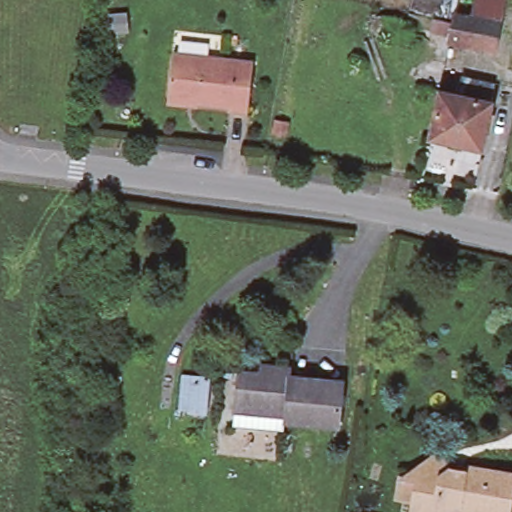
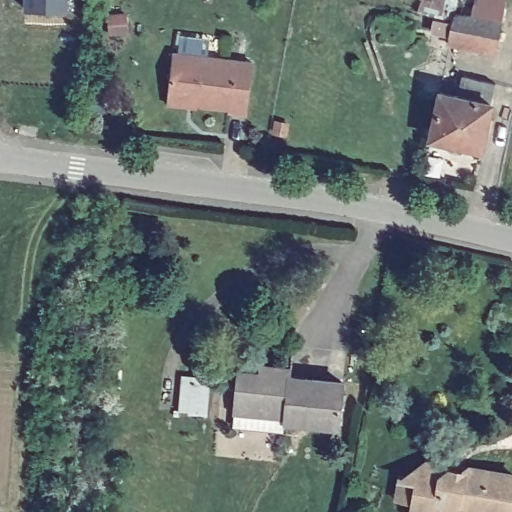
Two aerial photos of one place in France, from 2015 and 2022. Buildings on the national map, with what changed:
new [(22,10),(23,0),(68,0),(67,11),(22,10)]
unchanged [(448,11),(466,13),(470,0),(504,0),(491,55),(442,45),(448,11)]
unchanged [(162,103),(163,96),(168,52),(232,60),(250,61),(243,113),(225,110),(225,106),(193,102),(192,106),(162,103)]
unchanged [(424,140),(434,93),(455,97),(460,78),(490,85),(486,104),(476,151),(424,140)]
unchanged [(287,378),(342,384),(337,428),(283,422),(284,416),(234,411),(238,372),(259,374),(260,366),(279,368),(278,379),(287,380),(287,378)]
unchanged [(461,505),(450,503),(438,512),(405,512),(406,502),(390,499),(393,476),(401,477),(432,455),(443,471),(457,473),(463,468),(508,476),(501,512),(459,512),(461,505)]

